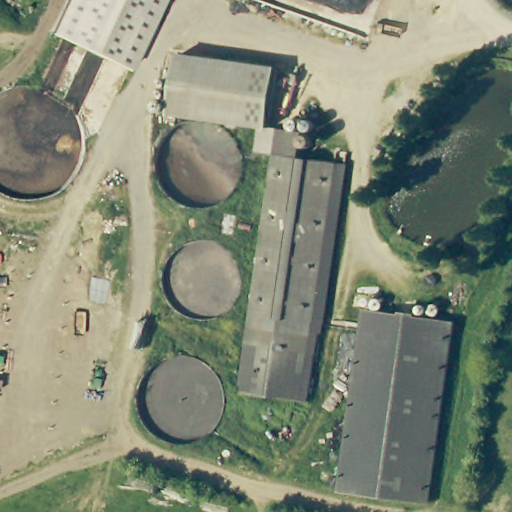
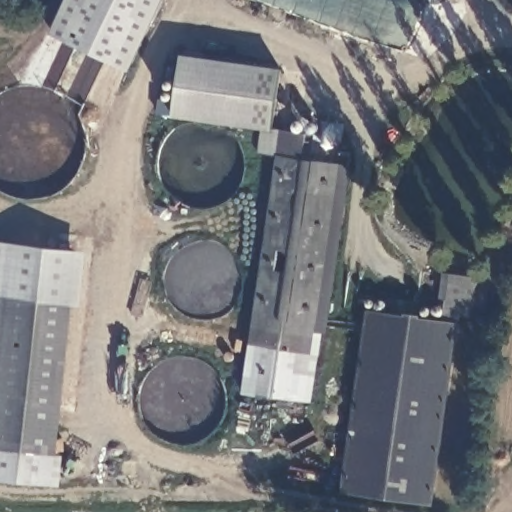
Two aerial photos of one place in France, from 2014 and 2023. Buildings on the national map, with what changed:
unchanged [(50,33),(65,0),(162,0),(128,71),(50,33)]
unchanged [(271,127),(185,112),(196,54),(236,61),(294,71),(292,80),(282,129),(271,127)]
unchanged [(350,166),(357,167),(324,330),(320,329),(307,401),(240,390),(286,151),(267,148),(271,127),(282,129),(291,130),(315,135),(310,159),(350,166)]
new [(80,306),(73,305),(58,454),(66,455),(61,486),(0,480),(0,240),(85,249),(80,306)]
new [(440,319),(442,299),(437,299),(440,272),(483,277),(459,322),(440,319)]
unchanged [(459,322),(426,505),(336,491),(370,307),(459,322)]

